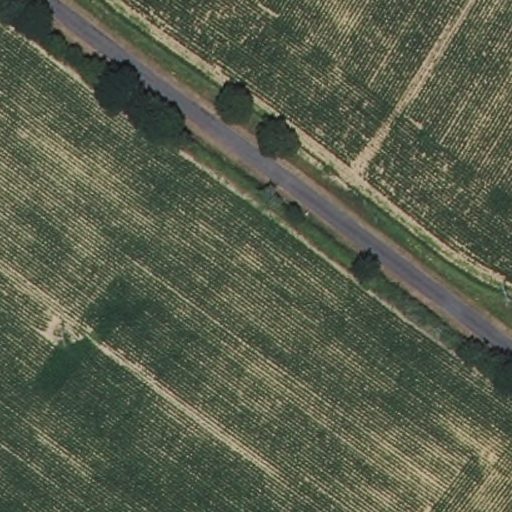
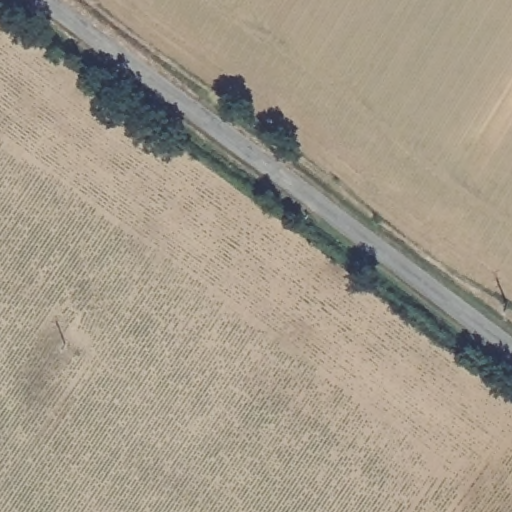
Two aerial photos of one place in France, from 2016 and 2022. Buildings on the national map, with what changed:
unchanged [(362,290),(351,281),(361,268),(373,278),(362,290)]

